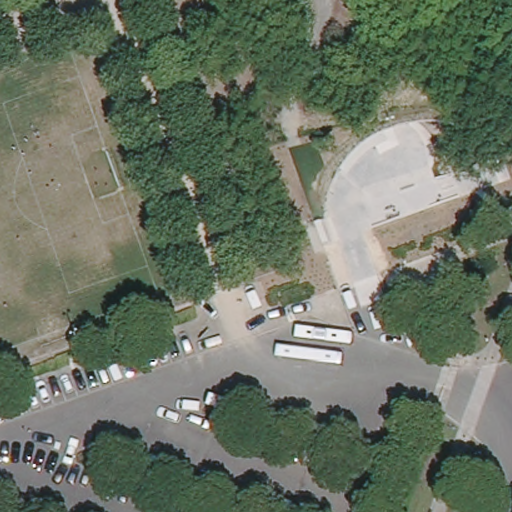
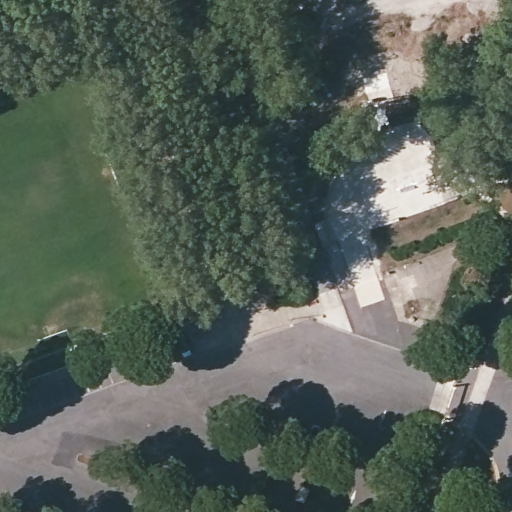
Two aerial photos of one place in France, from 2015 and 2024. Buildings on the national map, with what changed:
unchanged [(210,171),(215,164),(231,144),(253,169),(230,192),(215,176),(210,171)]

